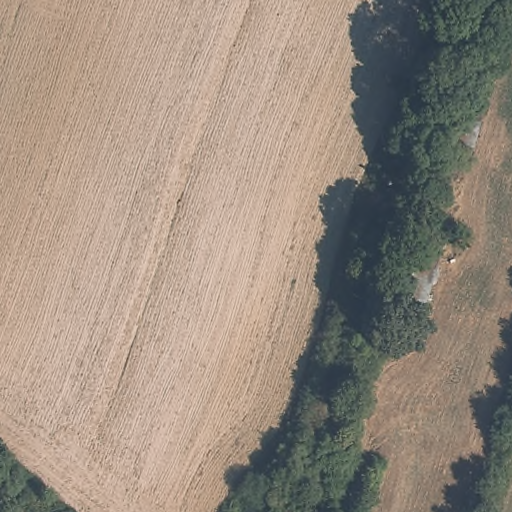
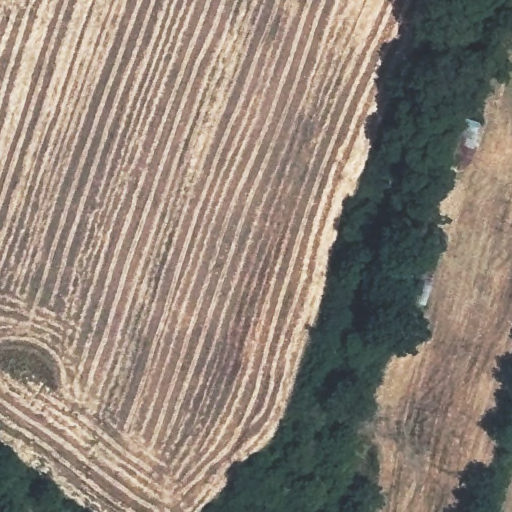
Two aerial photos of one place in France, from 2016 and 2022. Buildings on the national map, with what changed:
unchanged [(453,122),(478,131),(469,169),(441,156),(453,122)]
unchanged [(425,229),(448,238),(428,310),(402,299),(425,229)]

